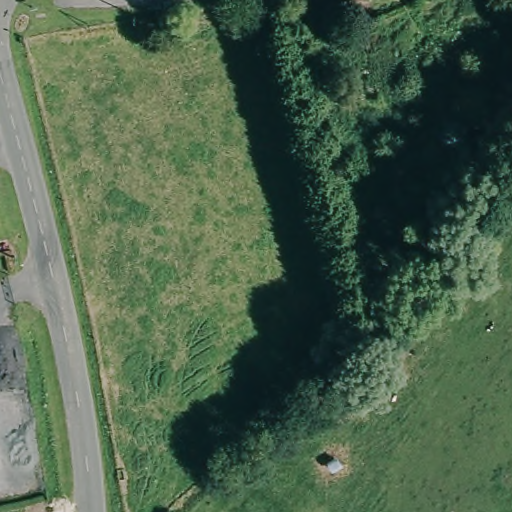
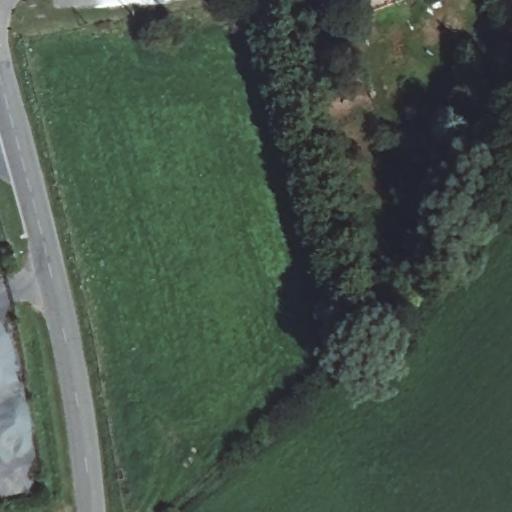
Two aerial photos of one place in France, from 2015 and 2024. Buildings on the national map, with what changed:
unchanged [(290,0),(309,0),(292,6),(290,0)]
unchanged [(341,0),(352,0),(342,3),(341,0)]

